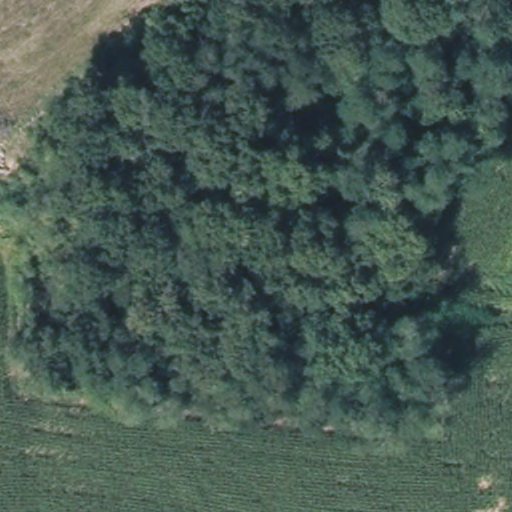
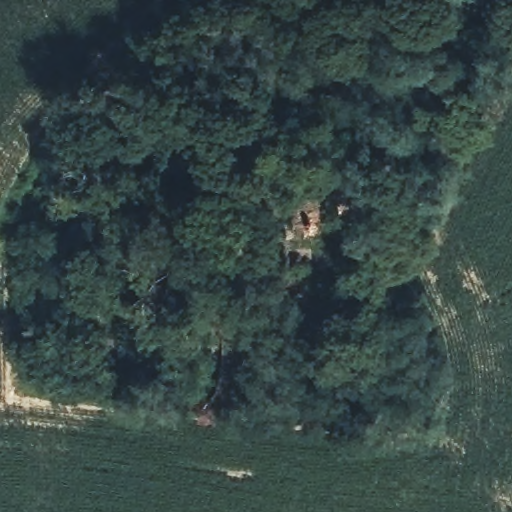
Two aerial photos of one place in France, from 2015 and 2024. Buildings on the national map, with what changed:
[]

